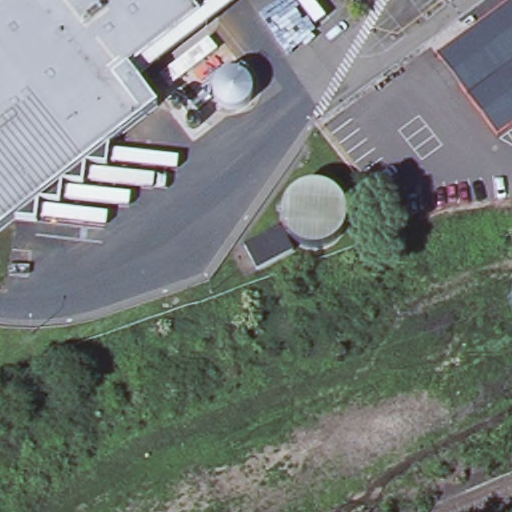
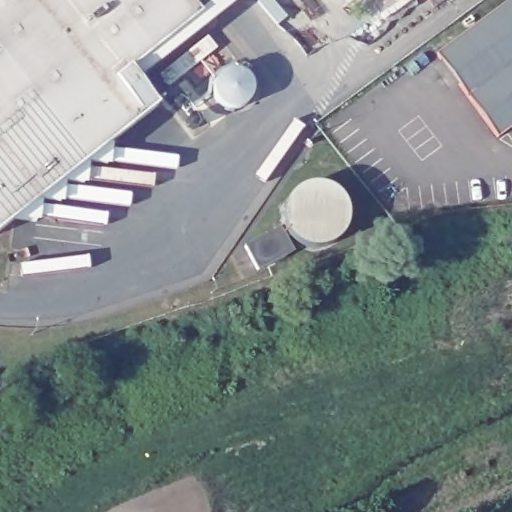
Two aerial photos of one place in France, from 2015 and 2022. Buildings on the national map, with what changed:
unchanged [(131,66),(159,101),(88,159),(86,180),(65,177),(63,197),(42,196),(39,217),(18,215),(0,230),(0,0),(196,0),(203,9),(131,66)]
unchanged [(512,0),(512,120),(493,134),(434,51),(505,0),(512,0)]
unchanged [(284,225),(286,231),(291,237),(298,242),(305,246),(308,247),(259,270),(243,243),(284,225)]

